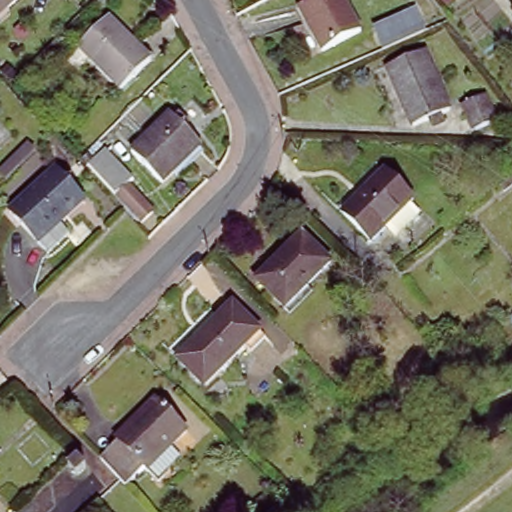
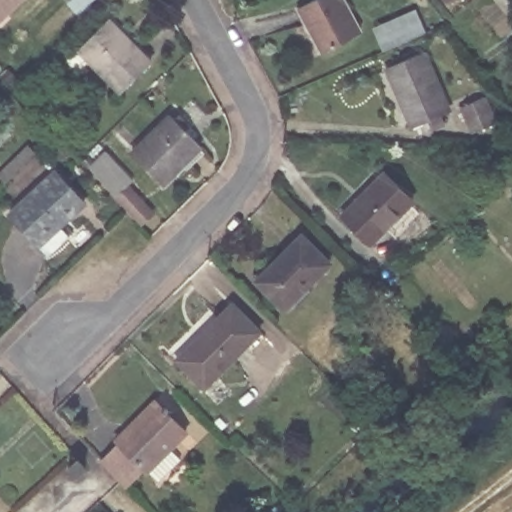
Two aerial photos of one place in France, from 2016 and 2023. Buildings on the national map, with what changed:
unchanged [(23,0),(0,23),(0,0),(23,0)]
unchanged [(339,0),(358,40),(325,56),(304,11),(325,0),(339,0)]
unchanged [(85,42),(114,14),(156,55),(127,84),(85,42)]
unchanged [(462,102),(454,107),(458,115),(444,121),(440,113),(427,120),(399,62),(434,46),(462,102)]
unchanged [(462,97),(485,86),(499,116),(475,126),(462,97)]
unchanged [(140,157),(177,120),(207,151),(170,187),(140,157)]
unchanged [(49,253),(44,248),(8,214),(50,170),(82,200),(59,223),(64,227),(69,233),(49,253)]
unchanged [(346,219),(389,176),(414,202),(371,244),(346,219)]
unchanged [(255,286),(300,239),(329,266),(284,312),(255,286)]
unchanged [(179,359),(232,306),(260,334),(207,387),(179,359)]
unchanged [(180,459),(160,478),(149,467),(127,489),(100,459),(118,441),(116,438),(130,426),(137,433),(165,407),(187,430),(170,447),(181,458),(180,459)]
unchanged [(82,463),(71,473),(62,465),(74,455),(82,463)]

